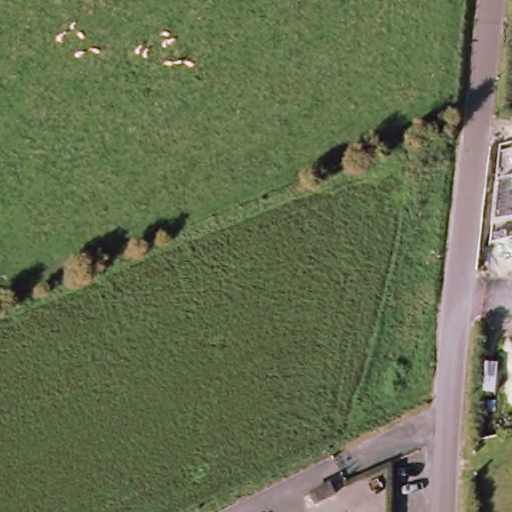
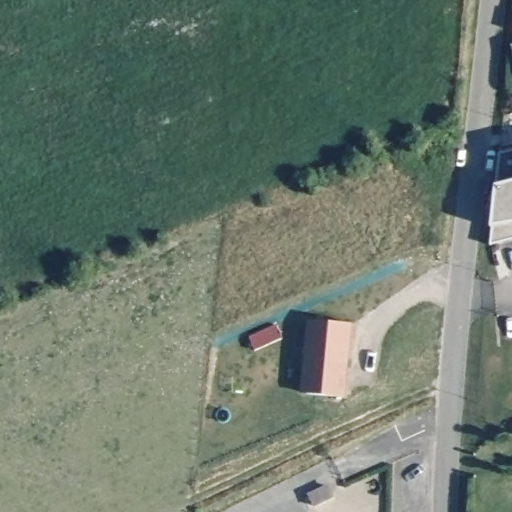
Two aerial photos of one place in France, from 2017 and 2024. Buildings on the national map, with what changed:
unchanged [(491,244),(491,227),(496,185),(500,153),(512,149),(512,238),(491,244)]
new [(308,320),(353,324),(346,397),(301,393),(308,320)]
unchanged [(309,497),(329,487),(334,497),(314,507),(309,497)]

